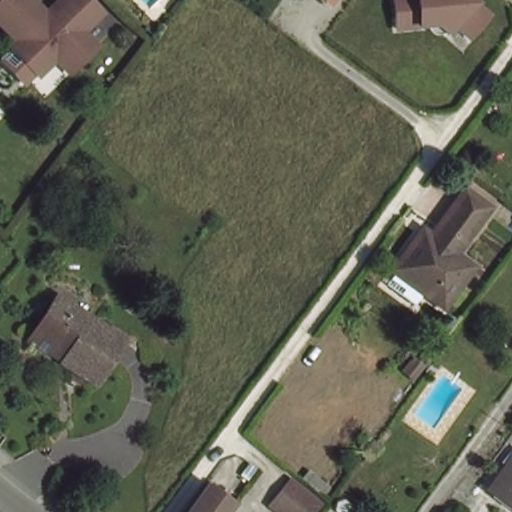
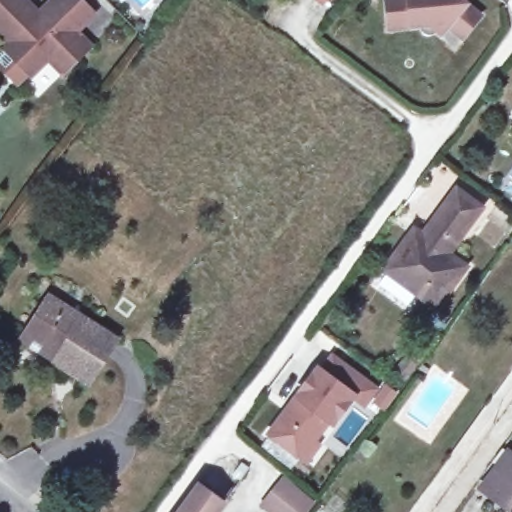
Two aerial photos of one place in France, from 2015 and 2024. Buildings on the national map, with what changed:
unchanged [(30,64),(4,35),(10,29),(0,19),(0,0),(36,0),(38,2),(40,0),(91,0),(93,2),(76,20),(90,34),(67,55),(62,60),(49,46),(30,64)]
unchanged [(455,37),(434,22),(385,29),(382,0),(471,0),(482,10),(455,37)]
unchanged [(512,102),(512,106),(510,105),(512,102)]
unchanged [(423,295),(419,292),(411,304),(382,283),(391,272),(387,269),(413,232),(423,240),(460,189),(486,207),(452,254),(469,265),(445,300),(440,307),(423,295)]
unchanged [(52,360),(57,354),(23,332),(47,295),(113,338),(86,381),(52,360)]
new [(306,461),(296,454),(269,434),(285,411),(290,405),(317,369),(321,372),(332,357),(375,390),(364,405),(352,396),(332,424),(328,421),(314,441),(319,445),(306,461)]
unchanged [(509,502),(485,485),(509,452),(512,454),(512,512),(511,512),(505,507),(509,502)]
unchanged [(280,470),(308,493),(293,512),(275,512),(272,510),(257,497),(266,487),(280,470)]
unchanged [(230,503),(223,512),(185,512),(205,485),(230,503)]

